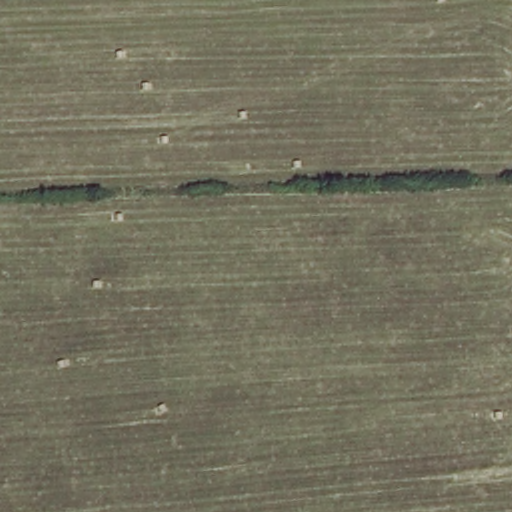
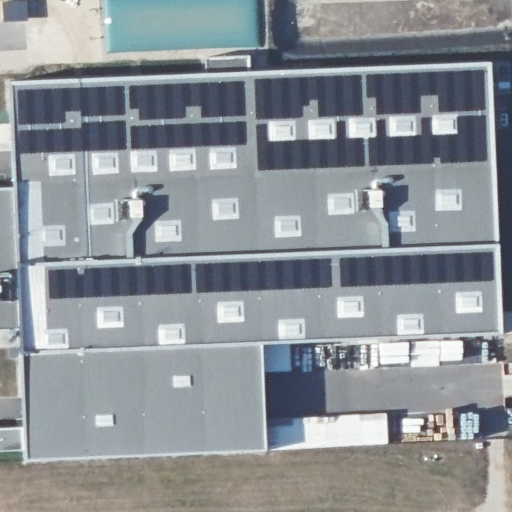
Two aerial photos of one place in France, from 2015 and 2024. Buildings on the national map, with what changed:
new [(19,327),(0,329),(0,189),(4,188),(3,175),(14,173),(10,82),(488,63),(495,244),(499,331),(259,341),(20,351),(19,327)]
new [(20,351),(259,341),(264,450),(26,459),(20,351)]

